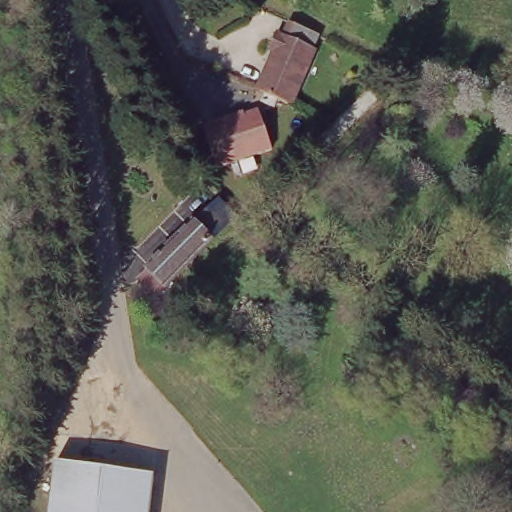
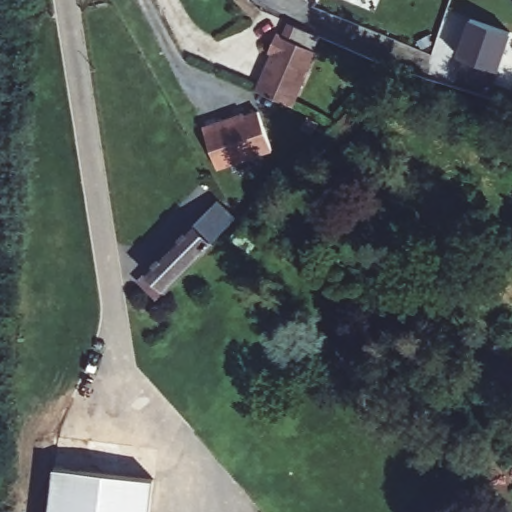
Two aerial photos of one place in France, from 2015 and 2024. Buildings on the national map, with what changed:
new [(493,84),(459,72),(463,59),(454,56),(468,17),(511,32),(493,84)]
unchanged [(289,109),(257,95),(275,55),(269,51),(276,37),(282,39),(288,27),(319,40),(289,109)]
unchanged [(334,129),(369,94),(377,103),(323,159),(314,150),(334,129)]
unchanged [(203,126),(259,110),(271,154),(217,172),(203,126)]
unchanged [(138,283),(149,272),(218,204),(224,209),(236,222),(233,225),(166,292),(156,303),(144,291),(138,283)]
unchanged [(56,465),(154,478),(150,512),(50,512),(56,465)]

